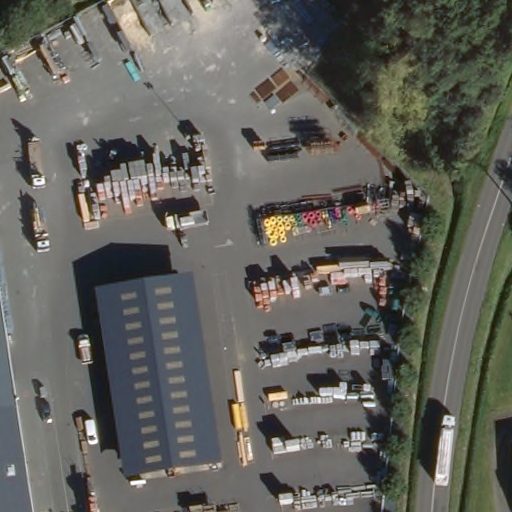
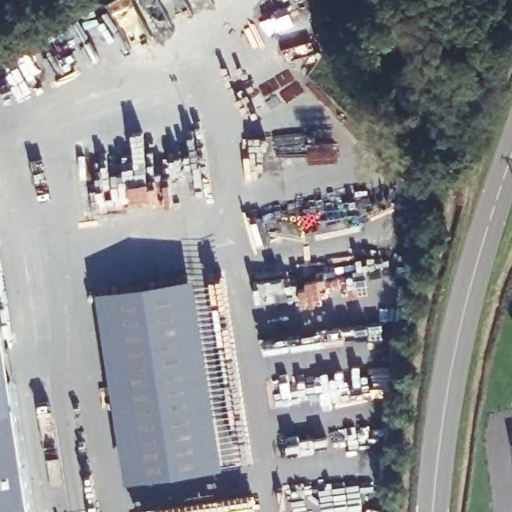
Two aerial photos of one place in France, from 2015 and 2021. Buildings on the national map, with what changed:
unchanged [(181,287),(202,432),(207,468),(136,480),(131,445),(111,299),(181,287)]
unchanged [(0,512),(0,333),(19,466),(25,512),(0,512)]

